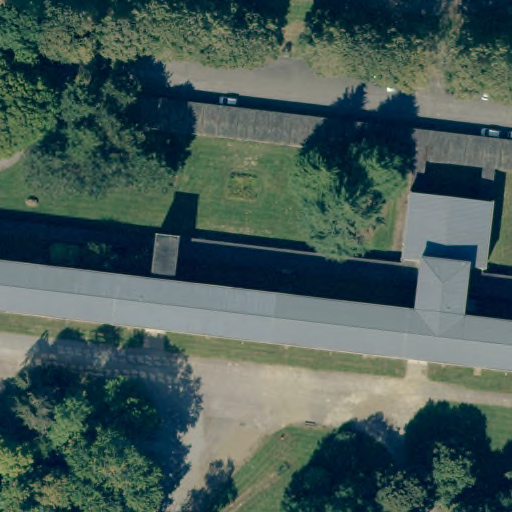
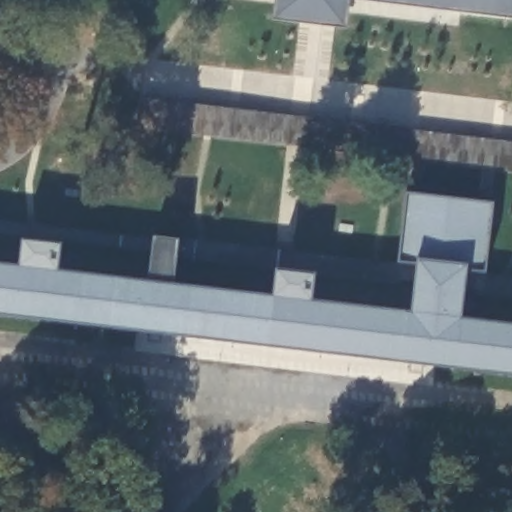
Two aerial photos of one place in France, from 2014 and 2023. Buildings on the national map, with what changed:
new [(347,28),(275,19),(276,0),(512,0),(512,19),(350,1),(347,28)]
unchanged [(185,102),(182,132),(137,127),(141,97),(185,102)]
unchanged [(484,273),(512,277),(512,297),(476,293),(477,288),(462,287),(457,320),(512,326),(512,372),(0,311),(0,264),(151,282),(155,250),(157,239),(177,238),(400,264),(408,194),(409,194),(413,160),(182,132),(185,102),(512,141),(512,172),(493,170),(490,204),(492,205),(484,273)]
unchanged [(157,239),(155,250),(0,231),(0,220),(157,239)]

